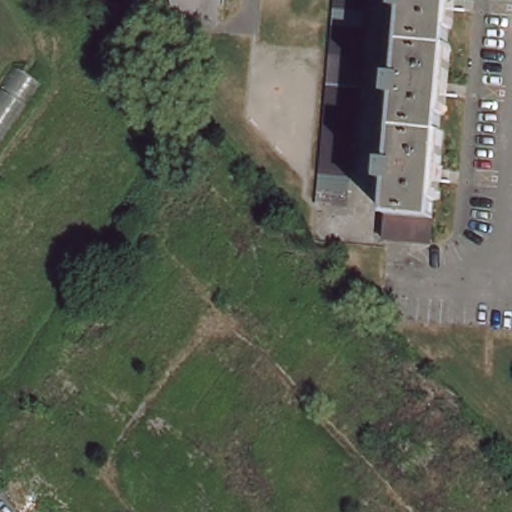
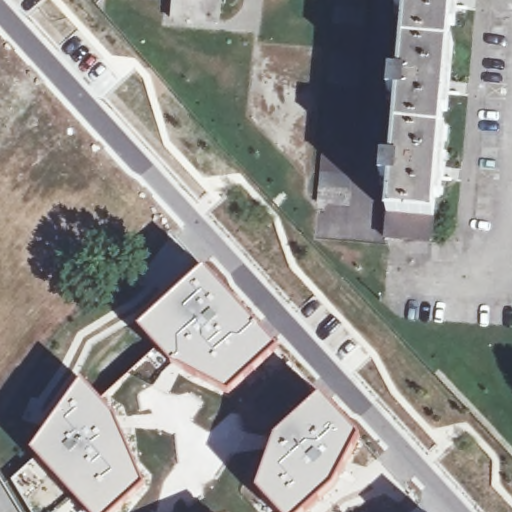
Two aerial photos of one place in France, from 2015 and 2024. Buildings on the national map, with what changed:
unchanged [(221,0),(219,23),(171,19),(172,4),(172,0),(221,0)]
unchanged [(315,199),(332,0),(362,0),(345,203),(315,199)]
unchanged [(451,12),(445,86),(459,88),(458,100),(445,99),(438,169),(453,170),(452,182),(437,180),(433,237),(390,232),(385,232),(388,183),(379,182),(383,145),(391,146),(395,98),(386,98),(390,61),(398,62),(402,14),(393,13),(394,0),(466,0),(465,13),(451,12)]
new [(276,338),(223,390),(173,366),(135,320),(200,264),(276,338)]
demolished [(307,292),(326,272),(355,304),(338,316),(307,292)]
new [(116,411),(140,479),(103,512),(87,512),(23,448),(75,376),(116,411)]
new [(352,429),(328,483),(296,512),(275,512),(245,493),(266,431),(318,392),(352,429)]

